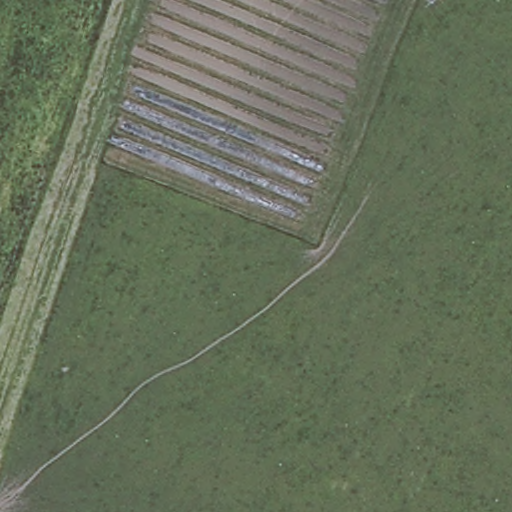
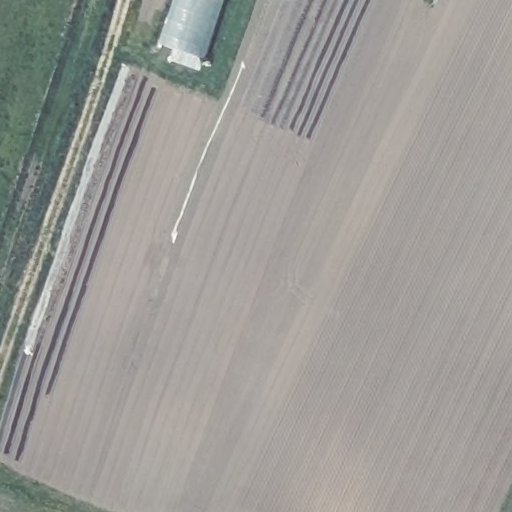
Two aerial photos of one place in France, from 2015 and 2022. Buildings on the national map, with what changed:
new [(179,0),(219,0),(200,56),(164,43),(179,0)]

